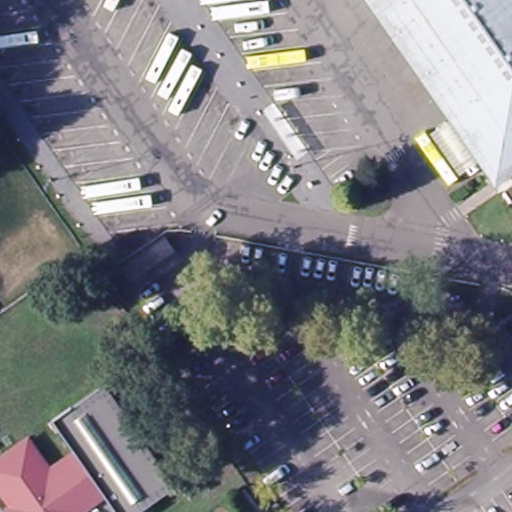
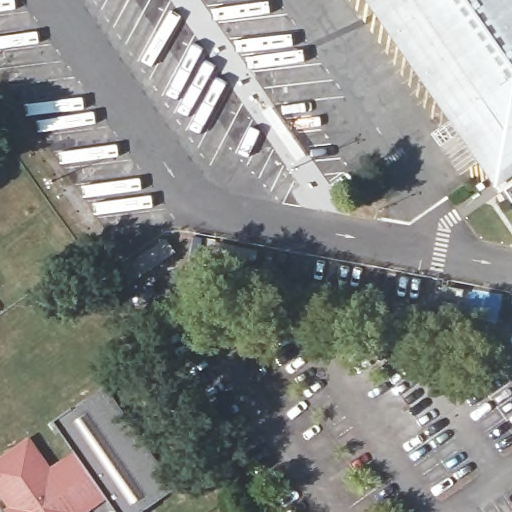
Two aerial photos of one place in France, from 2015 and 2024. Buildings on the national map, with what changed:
unchanged [(488,163),(460,124),(373,0),(512,0),(512,196),(510,194),(503,183),(488,163)]
unchanged [(488,163),(466,179),(438,139),(460,124),(488,163)]
unchanged [(180,264),(135,295),(119,270),(164,240),(180,264)]
unchanged [(0,467),(27,448),(49,478),(79,457),(55,423),(106,387),(179,489),(147,512),(119,512),(106,494),(81,512),(18,512),(0,487),(0,467)]

